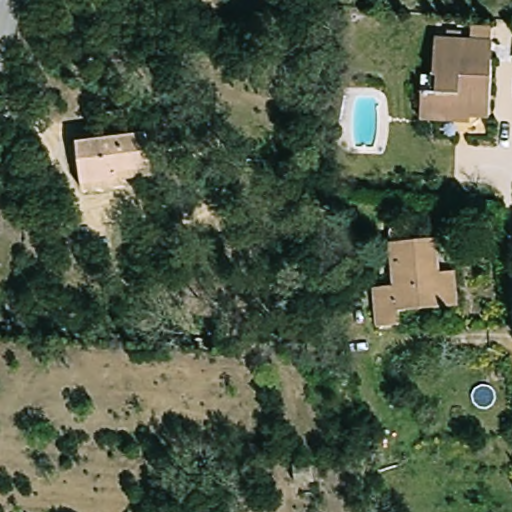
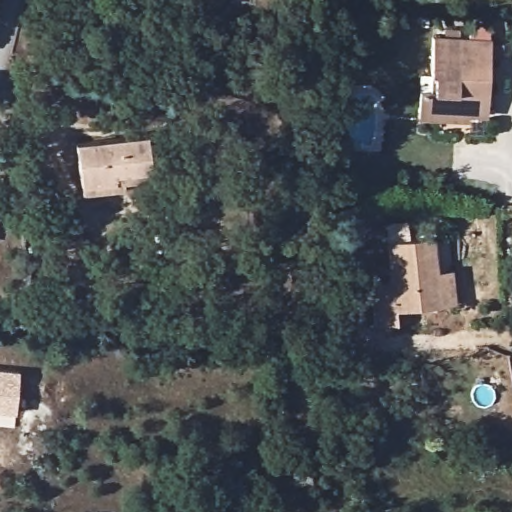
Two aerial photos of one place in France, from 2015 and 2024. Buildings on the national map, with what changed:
unchanged [(436,108),(437,117),(410,116),(409,90),(427,90),(427,79),(419,78),(418,40),(482,41),(483,116),(462,115),(462,109),(436,108)]
unchanged [(73,184),(68,143),(146,133),(150,174),(73,184)]
unchanged [(398,310),(400,325),(377,328),(372,286),(390,284),(385,241),(428,235),(432,270),(440,270),(452,267),(457,301),(444,303),(398,310)]
new [(0,411),(0,368),(20,370),(16,412),(0,411)]
unchanged [(291,485),(287,456),(306,452),(310,481),(291,485)]

